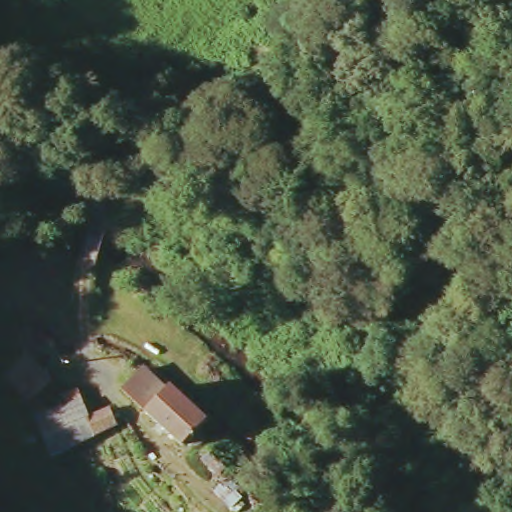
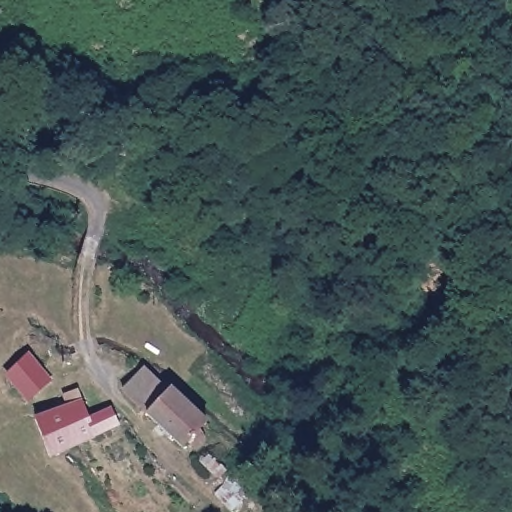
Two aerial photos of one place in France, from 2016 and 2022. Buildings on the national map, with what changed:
unchanged [(25,358),(46,381),(27,400),(6,376),(25,358)]
unchanged [(149,368),(171,389),(176,385),(210,418),(185,446),(127,390),(149,368)]
unchanged [(47,459),(32,419),(64,406),(62,398),(76,393),(88,421),(107,412),(114,429),(47,459)]

